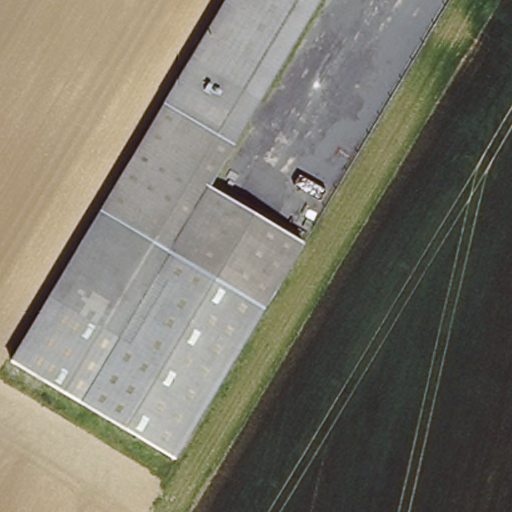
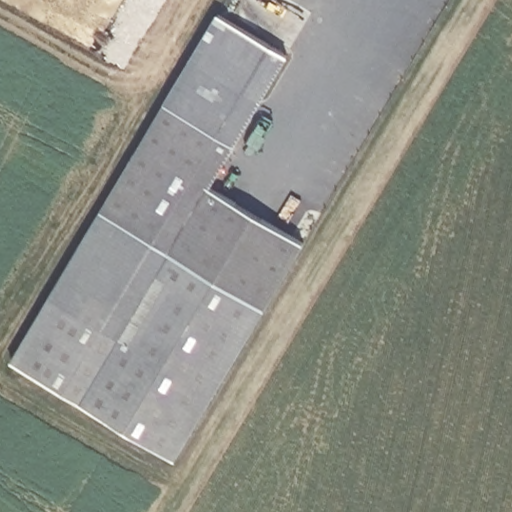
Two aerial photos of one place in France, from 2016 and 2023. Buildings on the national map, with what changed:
unchanged [(225,0),(319,0),(208,185),(308,245),(178,462),(10,361),(225,0)]

